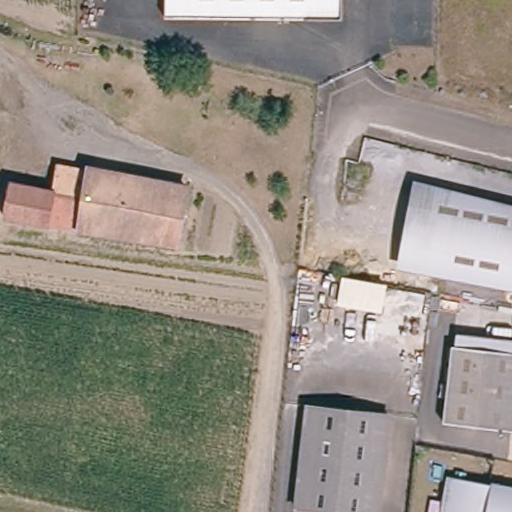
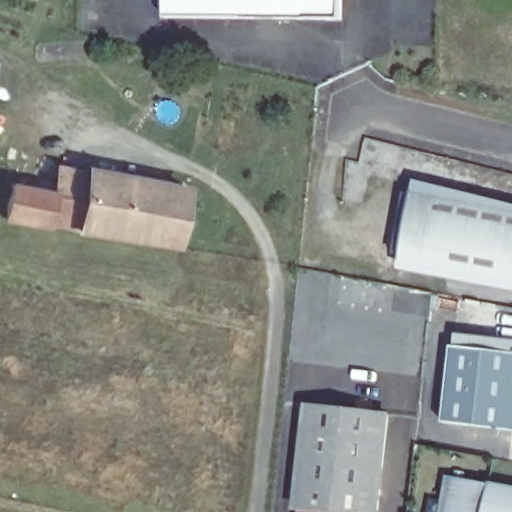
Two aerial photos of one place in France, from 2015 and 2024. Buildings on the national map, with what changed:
unchanged [(165,19),(166,0),(192,0),(191,20),(165,19)]
unchanged [(341,22),(191,20),(192,0),(342,0),(341,22)]
unchanged [(177,246),(78,230),(49,225),(6,218),(7,206),(0,204),(0,183),(11,185),(54,192),(58,165),(90,171),(187,188),(177,246)]
unchanged [(398,268),(413,189),(436,194),(420,274),(398,268)]
unchanged [(512,290),(430,276),(420,274),(436,194),(439,195),(512,207),(512,290)]
unchanged [(448,342),(452,343),(454,330),(512,338),(512,428),(473,423),(439,419),(448,342)]
unchanged [(376,512),(303,512),(303,511),(297,510),(309,408),(386,417),(376,512)]
unchanged [(512,485),(512,512),(433,512),(440,473),(512,485)]

